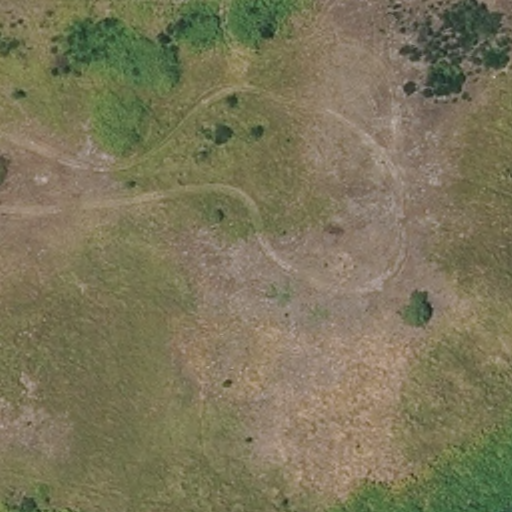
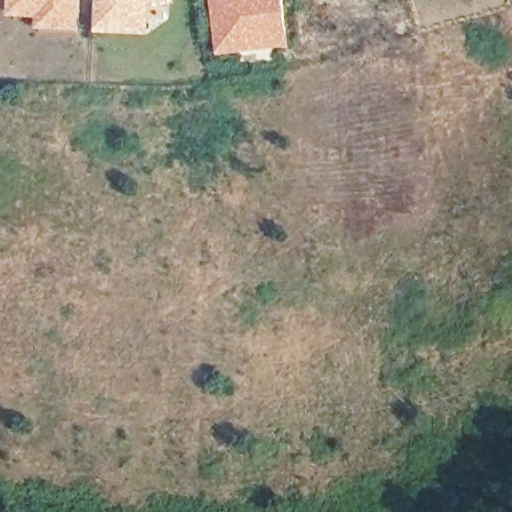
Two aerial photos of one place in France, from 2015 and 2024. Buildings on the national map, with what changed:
new [(9,17),(10,0),(83,0),(81,32),(38,30),(38,19),(9,17)]
new [(98,30),(99,0),(174,0),(174,6),(153,5),(151,36),(106,35),(98,30)]
new [(287,0),(293,47),(219,56),(212,0),(287,0)]

